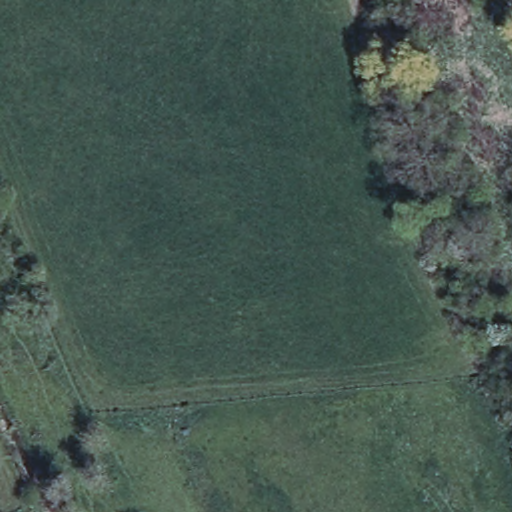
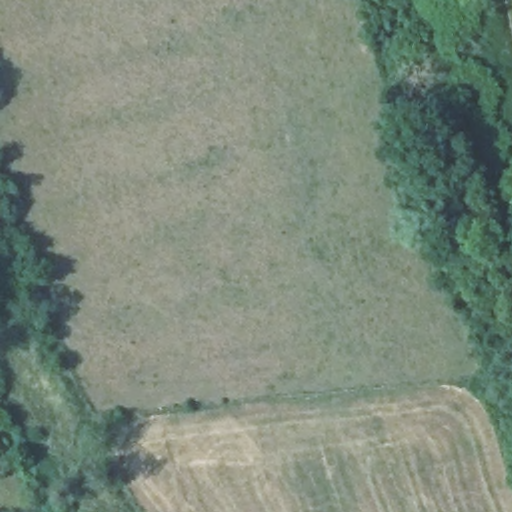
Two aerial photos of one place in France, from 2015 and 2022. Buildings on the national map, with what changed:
[]

